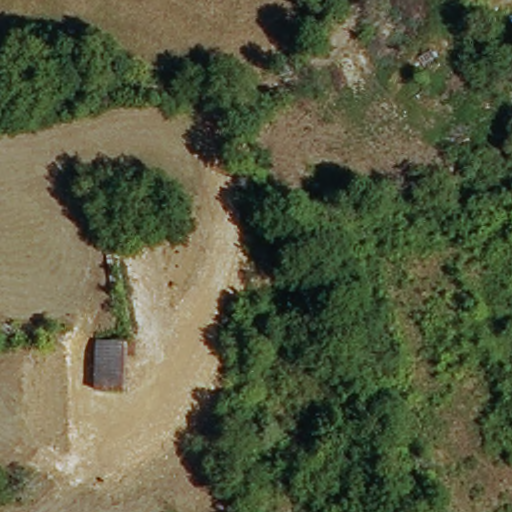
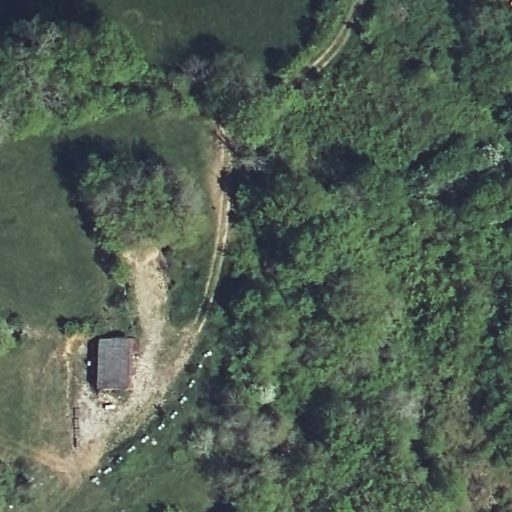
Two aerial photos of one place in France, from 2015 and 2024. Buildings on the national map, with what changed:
unchanged [(93,346),(136,347),(138,385),(92,387),(93,346)]

